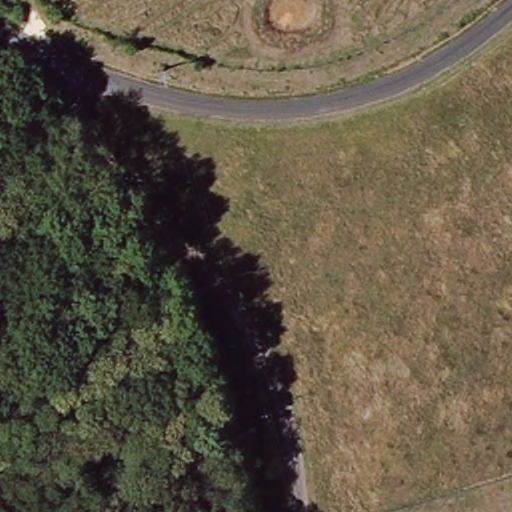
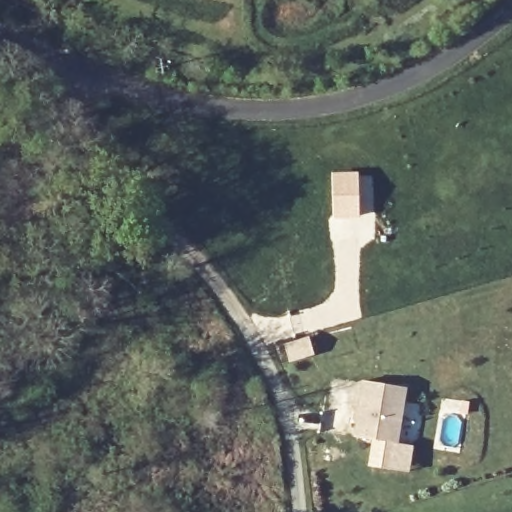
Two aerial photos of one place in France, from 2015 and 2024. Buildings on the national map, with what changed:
new [(362,381),(407,388),(398,444),(414,446),(410,471),(369,465),(373,439),(354,435),(362,381)]

